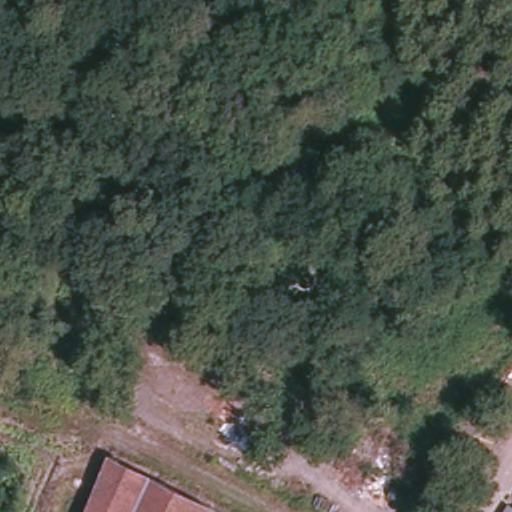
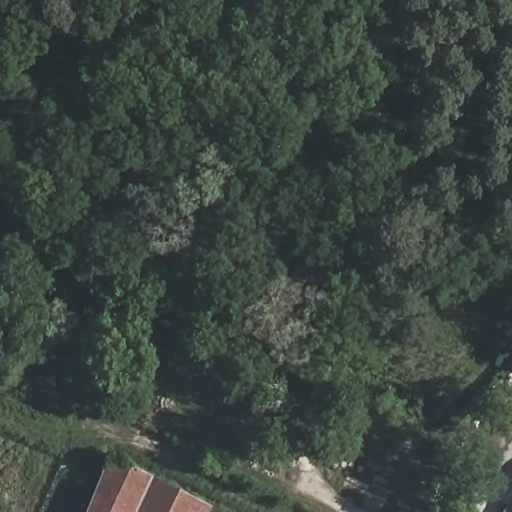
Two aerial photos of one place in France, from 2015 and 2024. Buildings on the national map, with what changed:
unchanged [(113,457),(168,486),(214,510),(213,512),(91,512),(113,457)]

